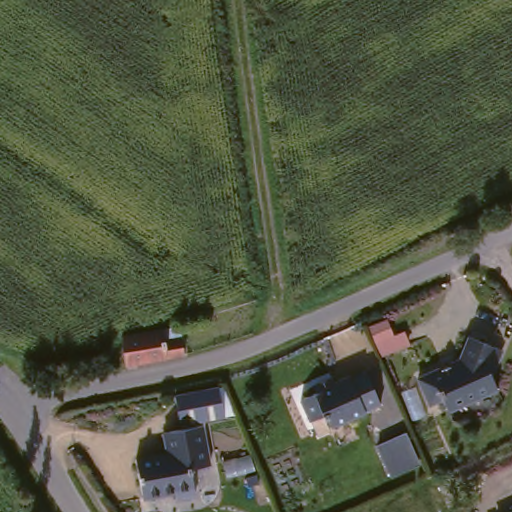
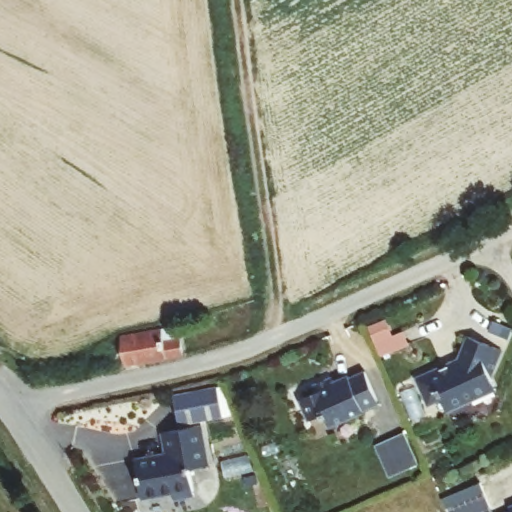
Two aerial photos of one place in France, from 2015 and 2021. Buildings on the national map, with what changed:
unchanged [(121,330),(164,323),(166,337),(181,334),(186,352),(128,364),(121,330)]
unchanged [(491,395),(444,415),(439,402),(426,408),(414,382),(434,372),(435,375),(454,363),(464,341),(496,355),(485,380),(491,395)]
unchanged [(361,410),(361,412),(347,419),(344,418),(329,427),(323,414),(308,421),(299,400),(314,392),(311,386),(329,377),(331,382),(346,376),(349,377),(363,370),(376,403),(361,410)]
unchanged [(222,417),(179,426),(173,397),(216,388),(222,417)]
unchanged [(193,497),(173,500),(172,494),(139,501),(133,460),(164,456),(162,432),(201,427),(209,467),(188,470),(193,497)]
unchanged [(388,476),(376,445),(406,432),(420,463),(388,476)]
new [(479,481),(492,512),(447,512),(441,497),(479,481)]
unchanged [(508,508),(512,506),(512,512),(509,512),(508,508)]

